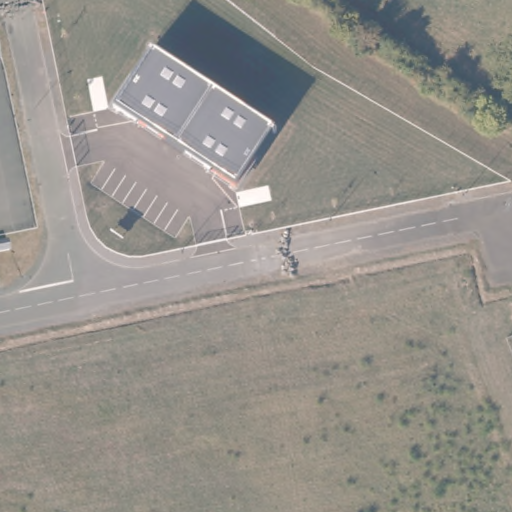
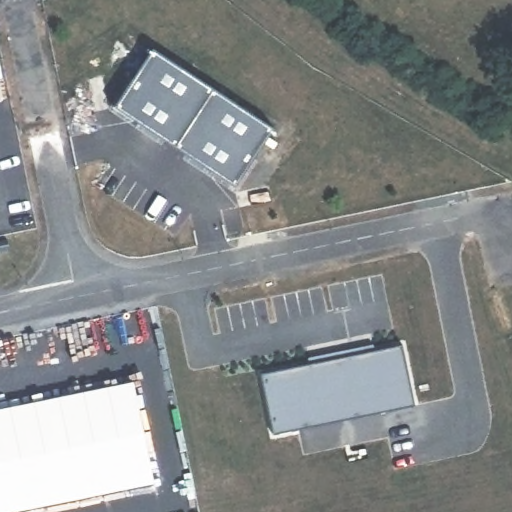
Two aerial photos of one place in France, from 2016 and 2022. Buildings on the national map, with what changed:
unchanged [(234,182),(116,106),(152,51),(269,127),(234,182)]
unchanged [(10,250),(0,252),(0,241),(8,240),(10,250)]
new [(274,433),(261,371),(402,345),(417,405),(274,433)]
new [(156,482),(10,512),(0,512),(0,407),(134,380),(156,482)]

